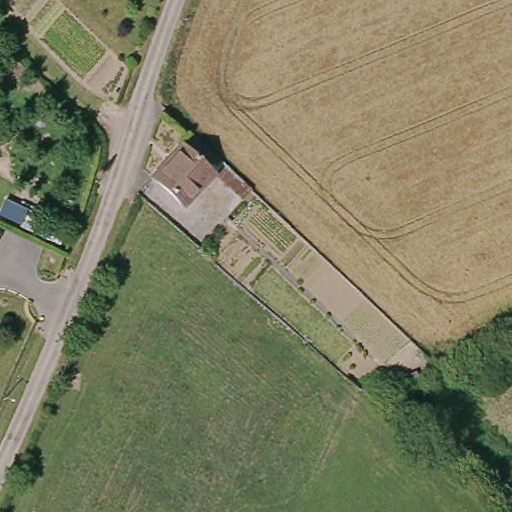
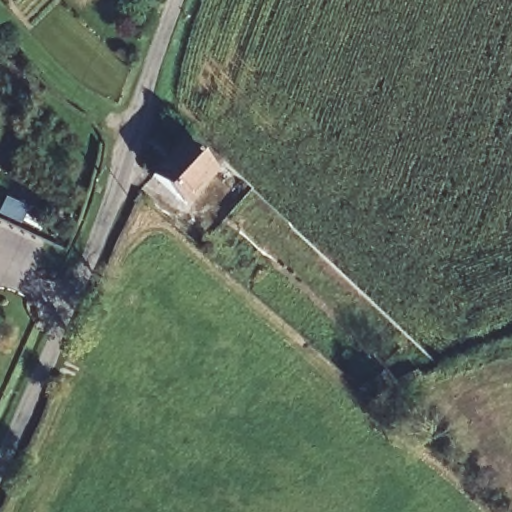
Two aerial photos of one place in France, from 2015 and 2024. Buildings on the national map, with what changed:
unchanged [(156,173),(182,141),(214,170),(189,202),(156,173)]

